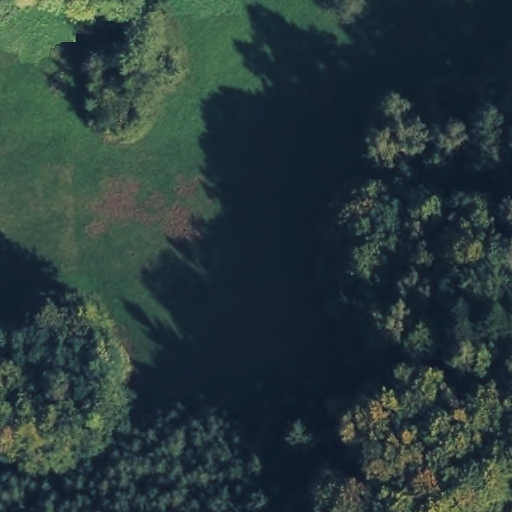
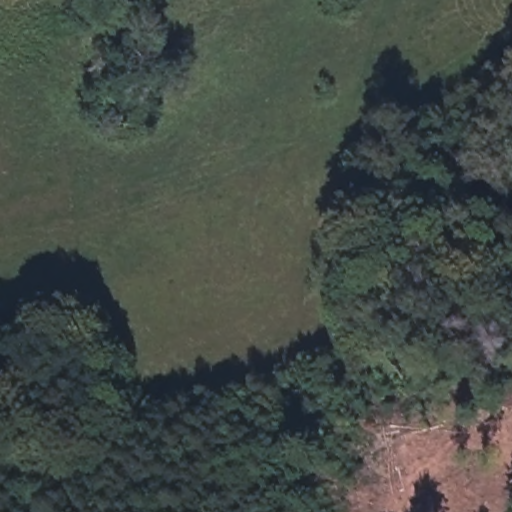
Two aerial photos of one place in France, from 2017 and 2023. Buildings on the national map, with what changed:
unchanged [(140,32),(157,77),(135,86),(117,41),(140,32)]

